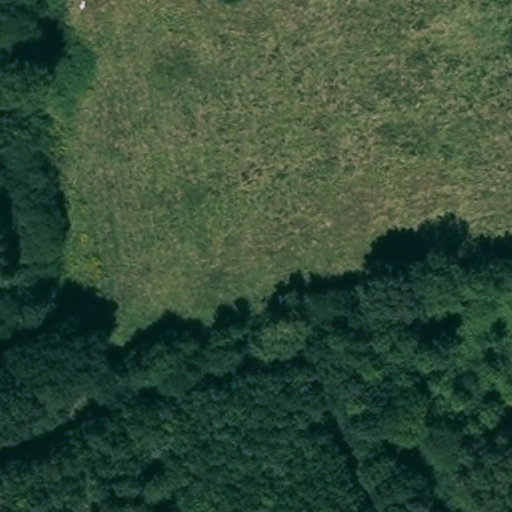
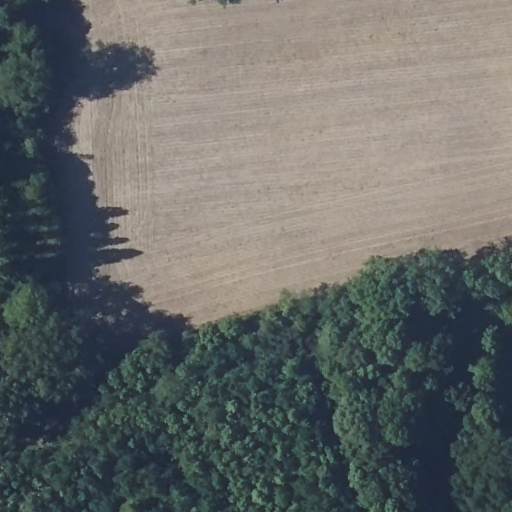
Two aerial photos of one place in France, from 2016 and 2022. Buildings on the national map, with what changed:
unchanged [(361,328),(366,343),(349,348),(345,332),(361,328)]

